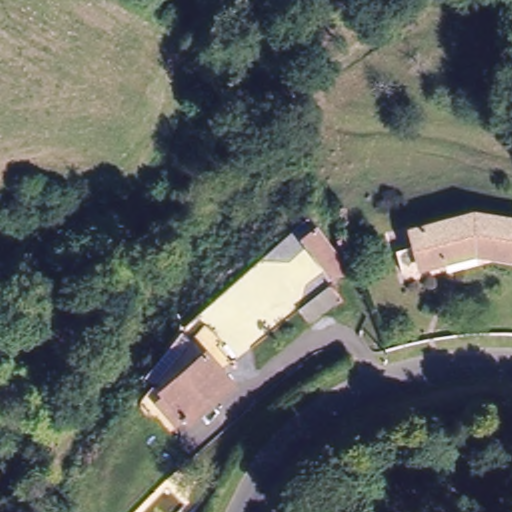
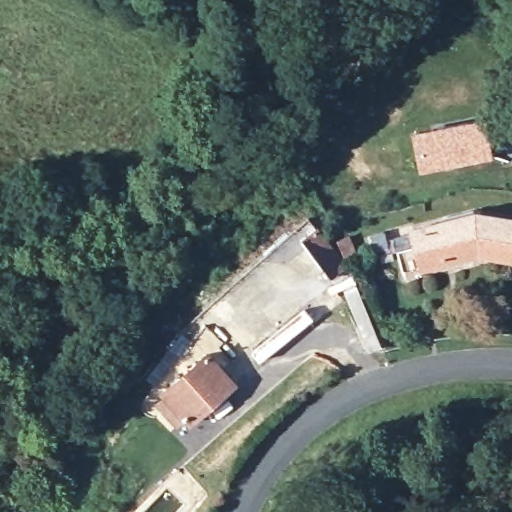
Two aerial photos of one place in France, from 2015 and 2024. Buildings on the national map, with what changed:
new [(486,112),(493,158),(417,174),(408,130),(486,112)]
unchanged [(476,247),(429,265),(414,229),(471,207),(512,215),(512,254),(476,247)]
unchanged [(336,256),(323,271),(302,252),(316,237),(336,256)]
unchanged [(196,352),(160,391),(153,381),(189,343),(196,352)]
unchanged [(160,410),(172,400),(168,396),(211,361),(238,394),(199,426),(198,428),(196,430),(193,428),(192,425),(181,435),(160,410)]

